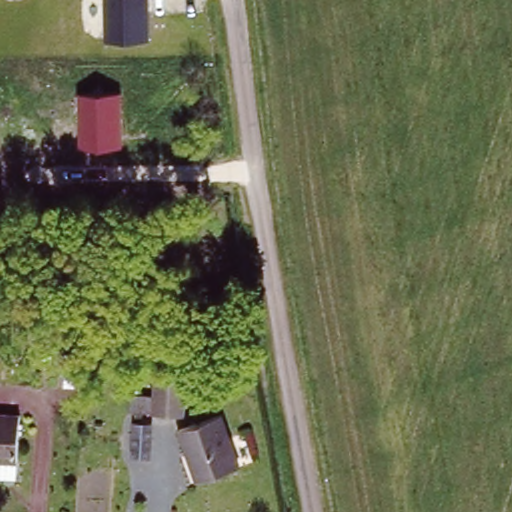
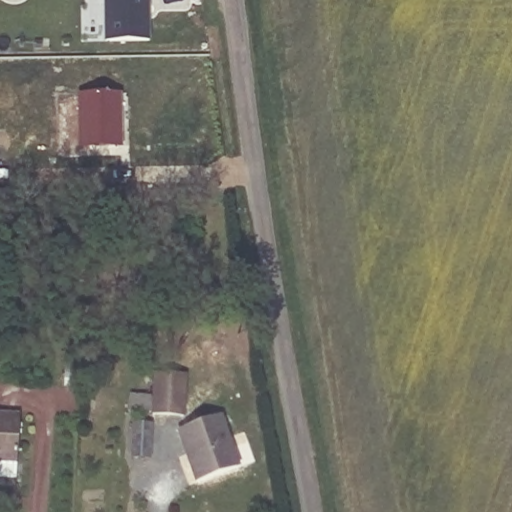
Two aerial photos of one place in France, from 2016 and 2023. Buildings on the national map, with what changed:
unchanged [(151,0),(152,39),(105,40),(104,0),(151,0)]
unchanged [(81,148),(79,94),(121,92),(123,146),(81,148)]
unchanged [(164,356),(161,398),(132,396),(133,375),(134,354),(164,356)]
unchanged [(129,378),(129,392),(108,391),(108,376),(129,378)]
unchanged [(112,438),(112,429),(113,403),(129,403),(128,429),(128,438),(112,438)]
unchanged [(0,475),(0,411),(20,412),(18,458),(17,475),(0,475)]
unchanged [(219,411),(236,466),(193,479),(177,424),(219,411)]

